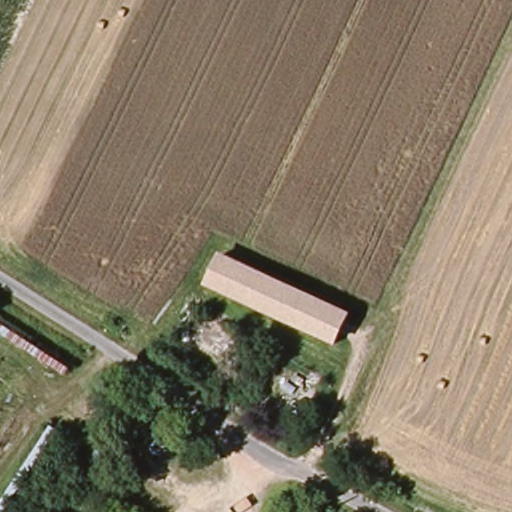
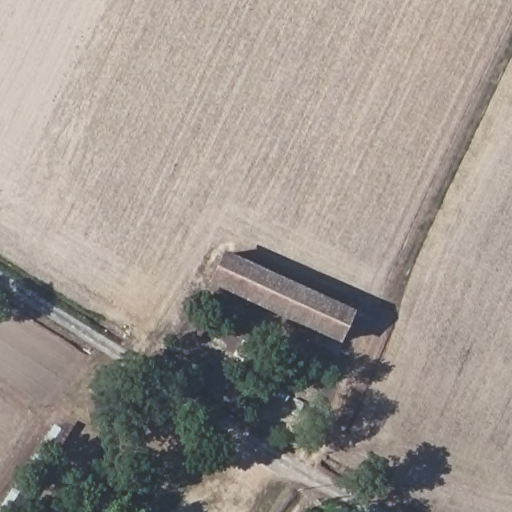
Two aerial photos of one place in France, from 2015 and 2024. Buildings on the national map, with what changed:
unchanged [(216,284),(227,258),(336,308),(325,333),(216,284)]

